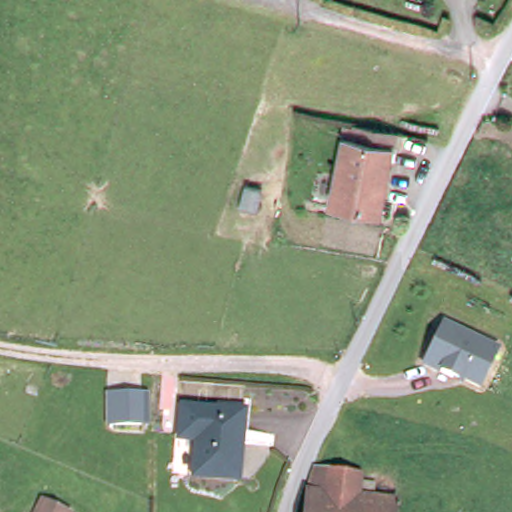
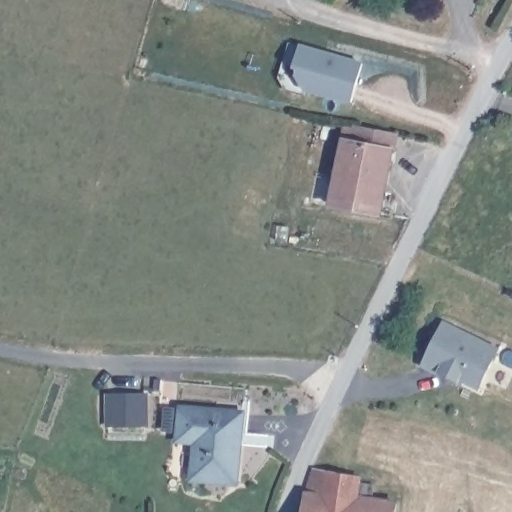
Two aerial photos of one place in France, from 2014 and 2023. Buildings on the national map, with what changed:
new [(364,61),(352,104),(307,91),(294,69),(301,44),(364,61)]
unchanged [(382,217),(332,207),(347,126),(397,138),(382,217)]
demolished [(257,209),(241,205),(246,183),(262,186),(257,209)]
unchanged [(454,377),(424,363),(444,323),(499,350),(481,386),(466,379),(464,382),(454,377)]
unchanged [(147,393),(147,428),(107,426),(106,393),(147,393)]
unchanged [(237,480),(195,476),(198,434),(181,433),(184,406),(244,412),(237,480)]
unchanged [(317,462),(352,469),(362,470),(361,476),(376,477),(374,493),(399,496),(396,512),(304,512),(307,485),(317,462)]

